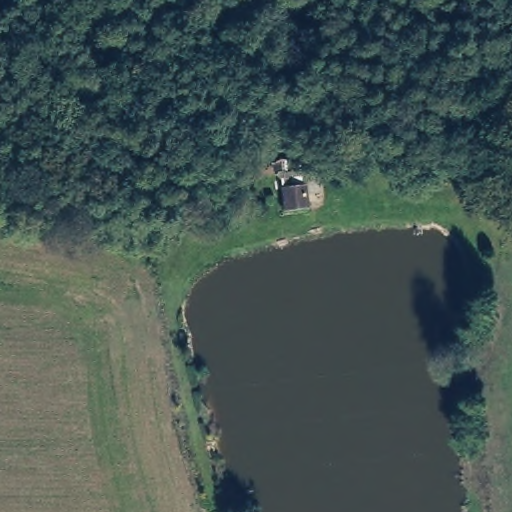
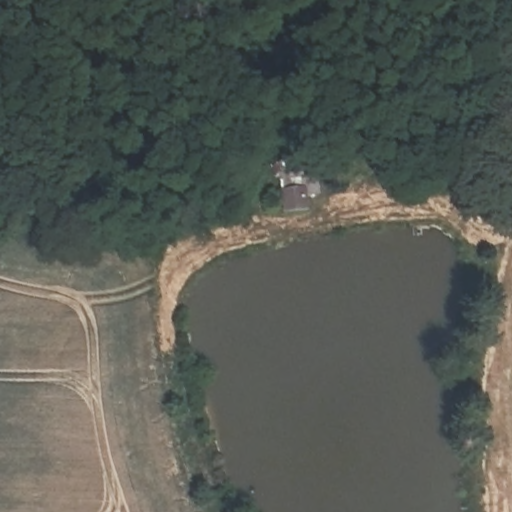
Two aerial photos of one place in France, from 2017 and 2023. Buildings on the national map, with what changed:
unchanged [(282,193),(310,190),(312,215),(283,215),(282,193)]

